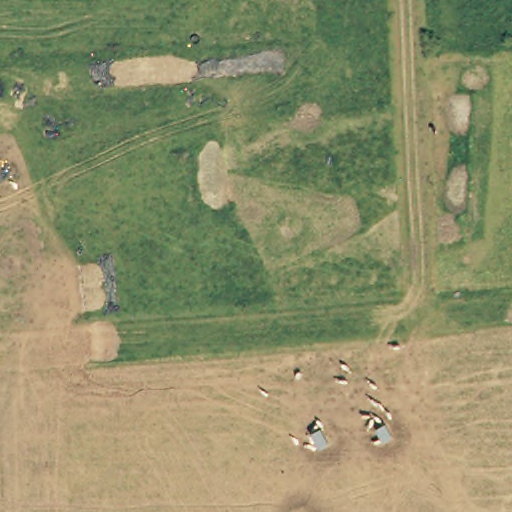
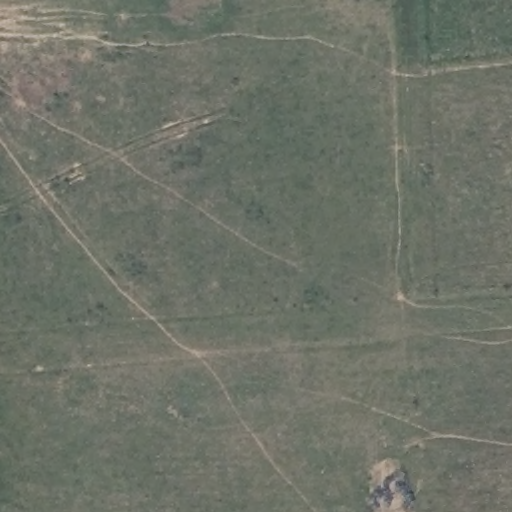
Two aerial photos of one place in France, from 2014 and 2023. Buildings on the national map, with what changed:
[]

